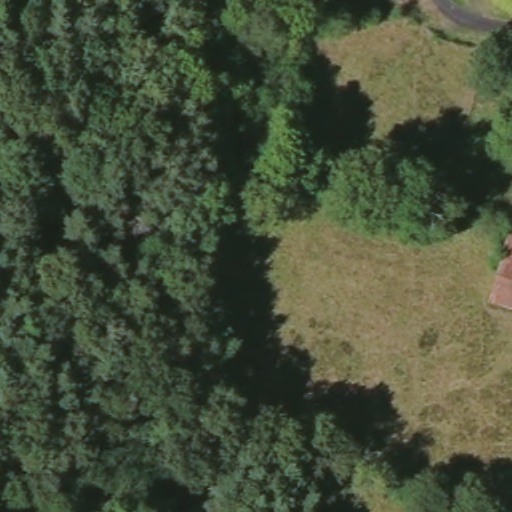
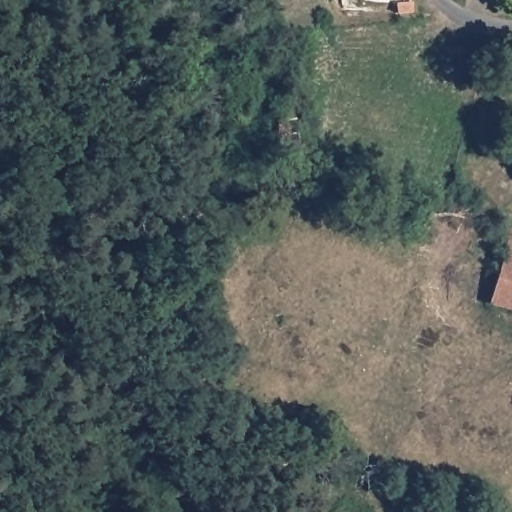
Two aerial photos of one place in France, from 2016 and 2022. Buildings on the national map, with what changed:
unchanged [(295,118),(298,151),(280,153),(277,120),(295,118)]
unchanged [(511,231),(512,231),(512,309),(490,303),(511,231)]

